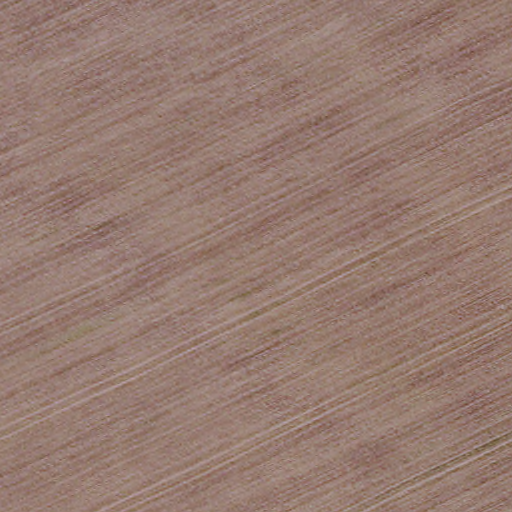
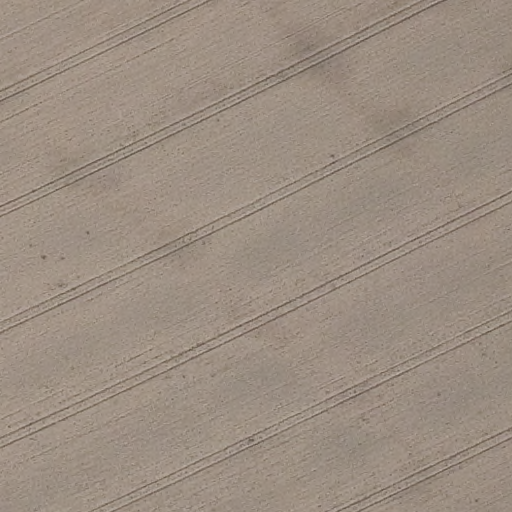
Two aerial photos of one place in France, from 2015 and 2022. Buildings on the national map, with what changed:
[]

